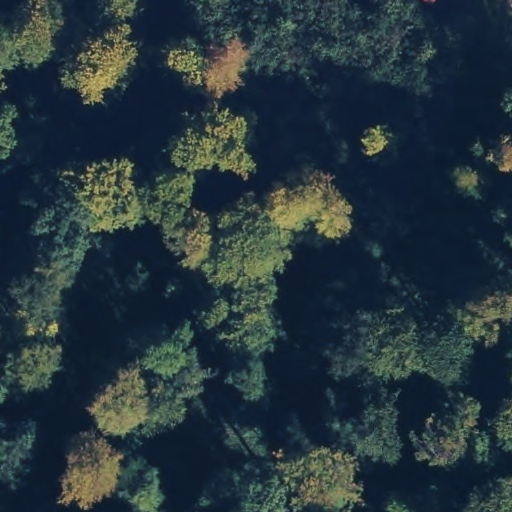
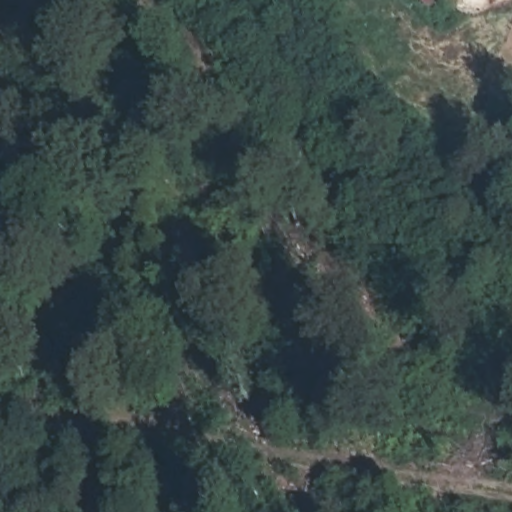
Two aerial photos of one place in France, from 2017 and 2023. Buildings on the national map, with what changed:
unchanged [(431,6),(423,0),(435,0),(431,6)]

